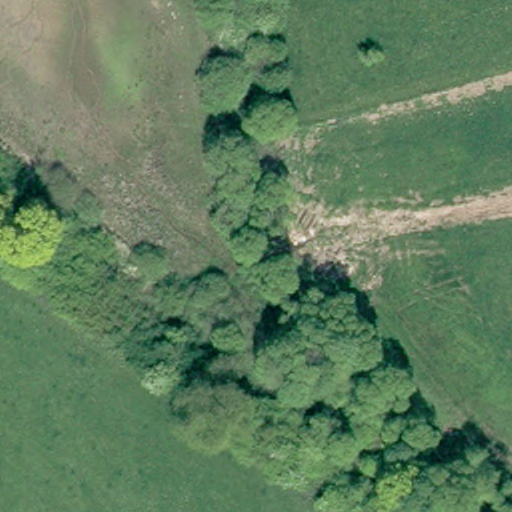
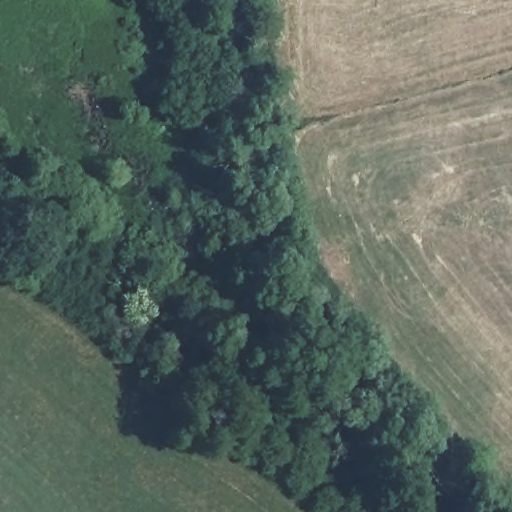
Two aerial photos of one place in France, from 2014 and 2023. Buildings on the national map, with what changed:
[]

